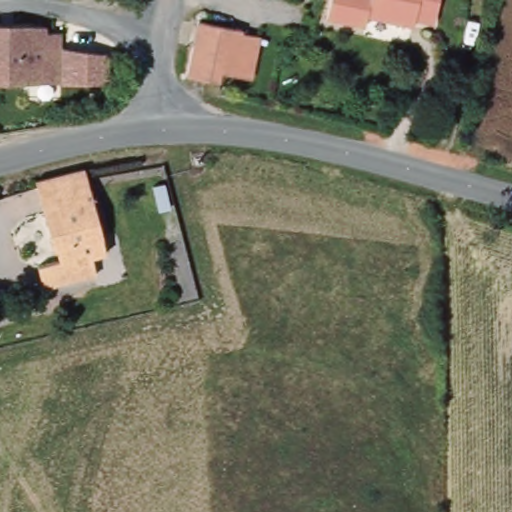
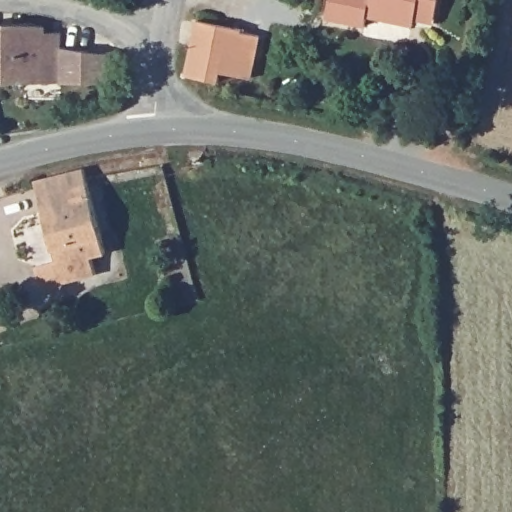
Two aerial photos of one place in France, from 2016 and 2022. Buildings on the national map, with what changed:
unchanged [(420,19),(418,27),(371,20),(368,29),(330,21),(334,0),(442,0),(437,23),(420,19)]
unchanged [(216,80),(185,72),(190,46),(196,20),(241,26),(235,63),(220,61),(217,75),(216,80)]
unchanged [(64,40),(64,55),(64,84),(0,83),(0,24),(10,23),(29,22),(50,27),(48,33),(64,33),(64,40)]
unchanged [(241,26),(264,34),(257,80),(234,76),(235,63),(241,26)]
unchanged [(112,106),(64,106),(64,84),(64,55),(112,55),(112,106)]
unchanged [(106,242),(105,242),(109,258),(94,261),(97,279),(44,290),(40,267),(61,263),(59,251),(56,252),(42,186),(42,183),(91,173),(106,242)]

